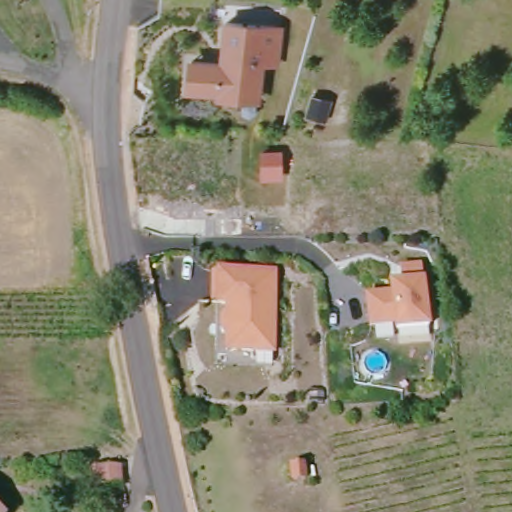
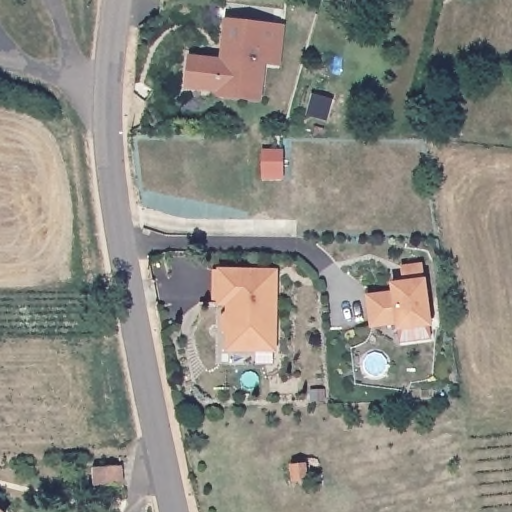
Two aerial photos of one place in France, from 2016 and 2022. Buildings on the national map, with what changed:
unchanged [(272,28),(282,30),(279,66),(264,65),(259,104),(215,100),(215,94),(183,90),(187,55),(217,57),(222,16),(272,21),(272,28)]
unchanged [(430,328),(397,332),(397,326),(370,329),(367,299),(392,296),(391,287),(402,286),(400,271),(421,268),(430,328)]
unchanged [(224,334),(223,324),(227,318),(227,310),(219,310),(214,310),(212,276),(217,276),(274,274),(277,354),(235,355),(230,356),(229,339),(224,334)]
unchanged [(293,465),(307,464),(310,479),(294,480),(293,465)]
unchanged [(111,465),(111,483),(82,484),(81,465),(111,465)]

